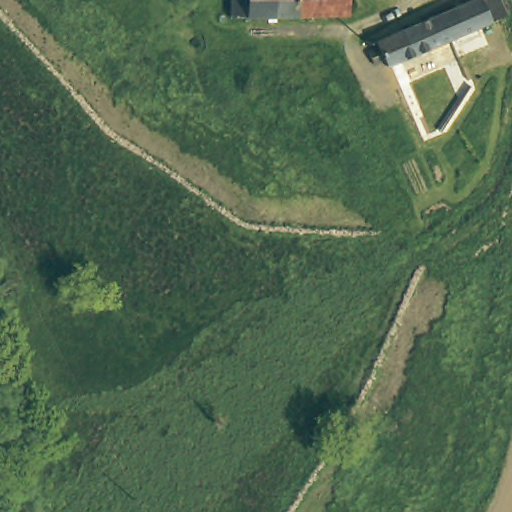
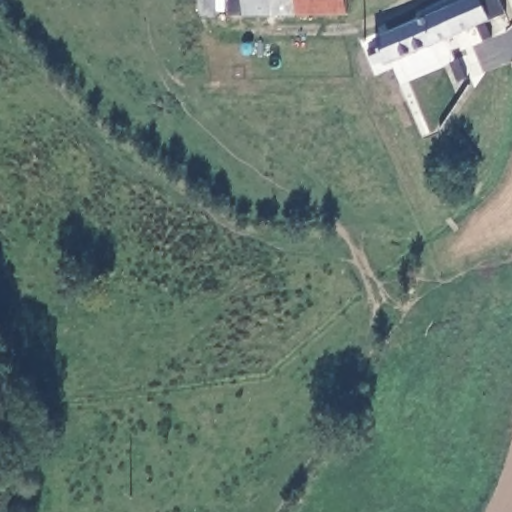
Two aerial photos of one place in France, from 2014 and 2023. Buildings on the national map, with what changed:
unchanged [(242,0),(359,0),(360,16),(242,18),(242,0)]
unchanged [(463,0),(497,0),(501,9),(505,19),(488,25),(385,70),(373,39),(371,34),(463,0)]

